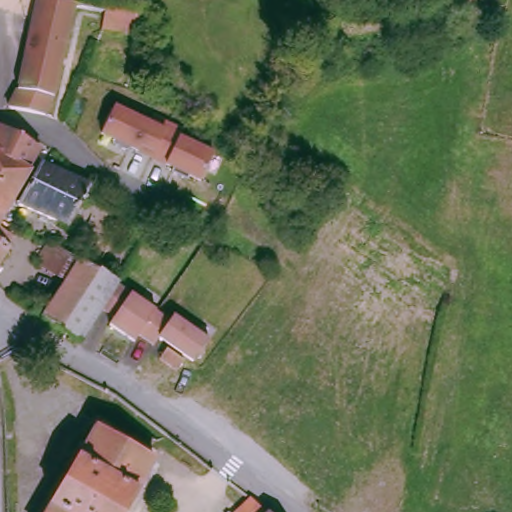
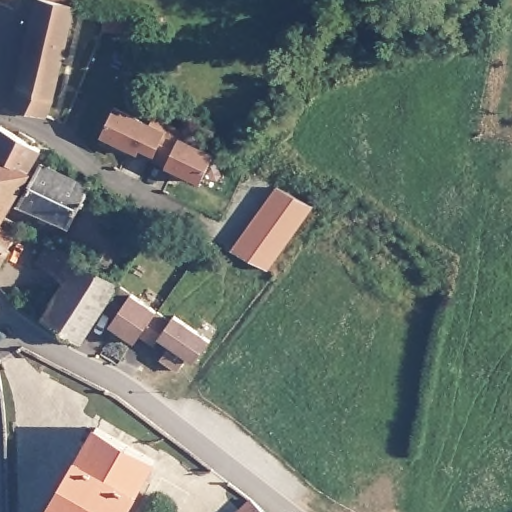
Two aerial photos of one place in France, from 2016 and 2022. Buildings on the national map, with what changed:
unchanged [(82,4),(59,95),(49,116),(11,108),(20,88),(45,0),(57,0),(79,4),(82,4)]
unchanged [(143,15),(138,38),(108,29),(105,28),(105,19),(107,19),(107,9),(143,15)]
unchanged [(184,127),(181,133),(215,150),(202,177),(191,171),(188,176),(173,168),(174,163),(132,143),(129,148),(113,140),(115,135),(104,130),(118,103),(151,119),(154,112),(184,127)]
unchanged [(40,146),(28,166),(0,149),(0,122),(40,146)]
unchanged [(31,168),(18,190),(11,188),(0,182),(0,149),(28,166),(31,168)]
unchanged [(91,181),(70,224),(20,201),(36,171),(43,158),(50,161),(91,181)]
unchanged [(5,213),(0,222),(0,182),(11,188),(18,190),(13,200),(16,202),(9,215),(5,213)]
new [(276,188),(279,189),(314,208),(267,269),(231,253),(276,188)]
unchanged [(5,213),(9,215),(19,220),(9,247),(0,260),(0,222),(5,213)]
unchanged [(103,304),(81,337),(73,333),(70,337),(65,335),(68,330),(64,327),(60,333),(47,323),(50,319),(43,314),(66,279),(38,261),(53,239),(118,279),(103,304)]
unchanged [(118,279),(173,314),(176,309),(213,332),(198,355),(161,332),(156,338),(141,328),(136,335),(110,319),(115,312),(103,304),(118,279)]
unchanged [(178,365),(163,354),(171,344),(186,354),(178,365)]
unchanged [(133,493),(136,496),(126,512),(46,512),(48,509),(46,507),(73,459),(75,461),(93,429),(151,461),(133,493)]

